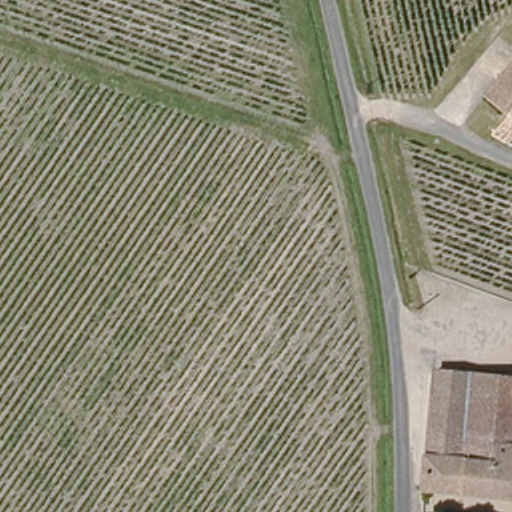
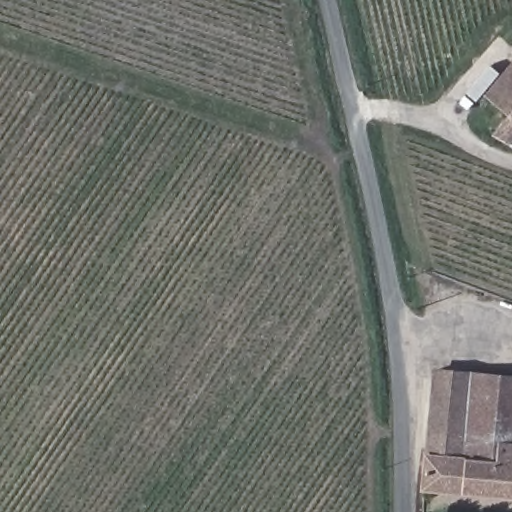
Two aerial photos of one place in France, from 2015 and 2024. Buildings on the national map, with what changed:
unchanged [(511,109),(488,91),(512,63),(512,141),(494,131),(511,109)]
unchanged [(419,489),(422,451),(430,365),(512,373),(512,497),(462,495),(419,489)]

